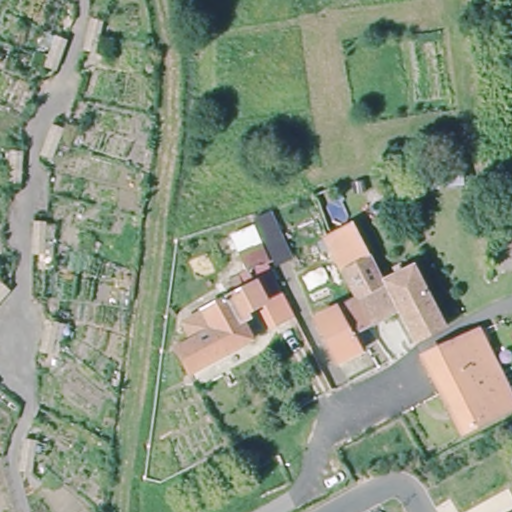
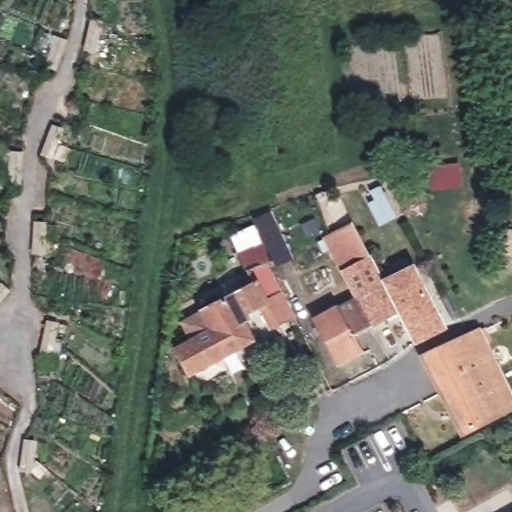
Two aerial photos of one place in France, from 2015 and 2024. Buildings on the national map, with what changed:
unchanged [(442,190),(395,191),(395,171),(441,171),(442,190)]
unchanged [(338,195),(349,189),(374,175),(378,174),(395,204),(367,220),(361,210),(350,215),(338,195)]
unchanged [(337,269),(317,237),(321,235),(305,204),(327,192),(346,227),(355,243),(362,256),(337,269)]
unchanged [(287,248),(267,255),(252,213),(272,207),(287,248)]
unchanged [(506,209),(512,209),(512,285),(501,284),(506,209)]
unchanged [(355,243),(366,237),(372,249),(392,240),(402,258),(372,274),(378,285),(352,300),(337,269),(362,256),(355,243)]
unchanged [(237,317),(249,342),(187,375),(175,351),(189,344),(179,325),(251,286),(241,265),(262,257),(280,293),(237,317)]
unchanged [(367,328),(352,300),(378,285),(408,268),(440,327),(413,341),(397,311),(367,328)]
unchanged [(284,296),(296,320),(268,333),(258,310),(284,296)]
unchanged [(350,337),(357,352),(335,363),(313,321),(352,300),(367,328),(358,333),(350,337)]
unchanged [(512,400),(512,407),(462,434),(440,392),(422,358),(461,338),(476,331),(512,400)]

